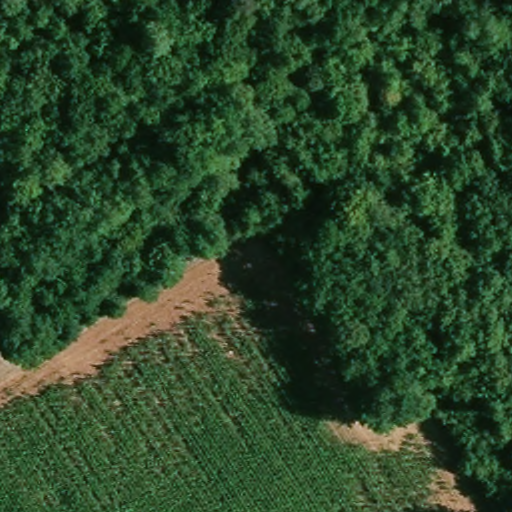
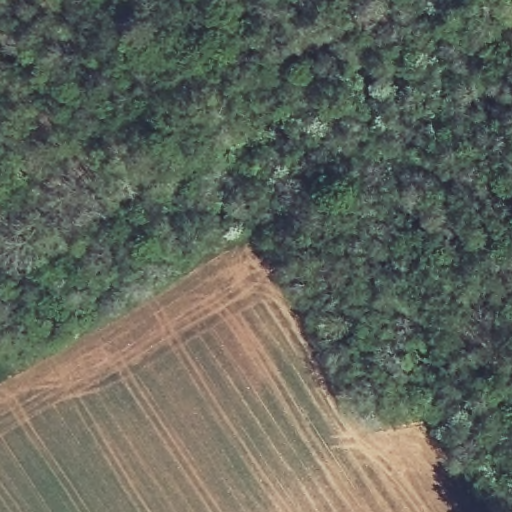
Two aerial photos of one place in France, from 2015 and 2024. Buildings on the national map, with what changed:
[]

